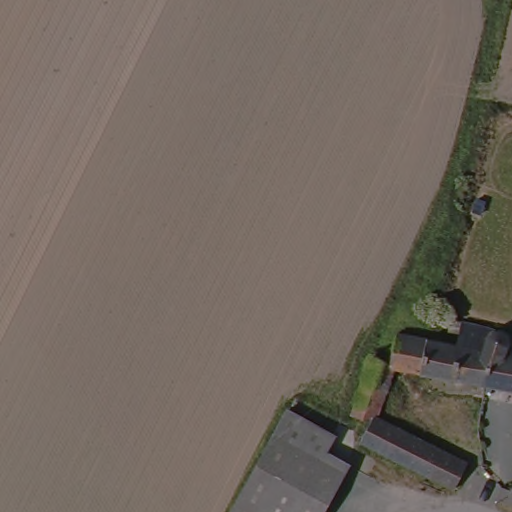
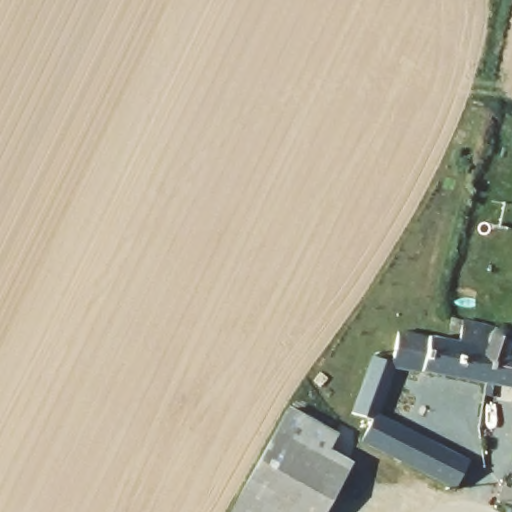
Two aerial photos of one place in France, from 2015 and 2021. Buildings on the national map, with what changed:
unchanged [(399,368),(382,413),(471,463),(457,492),(454,492),(374,447),(368,443),(366,439),(374,421),(358,412),(380,357),(389,359),(398,361),(404,331),(429,337),(465,346),(468,334),(454,331),(453,331),(457,316),(469,320),(499,327),(486,387),(399,368)]
unchanged [(486,387),(499,327),(512,331),(512,393),(486,387)]
unchanged [(296,413),(341,440),(330,460),(351,472),(328,512),(231,512),(289,410),(296,413)]

